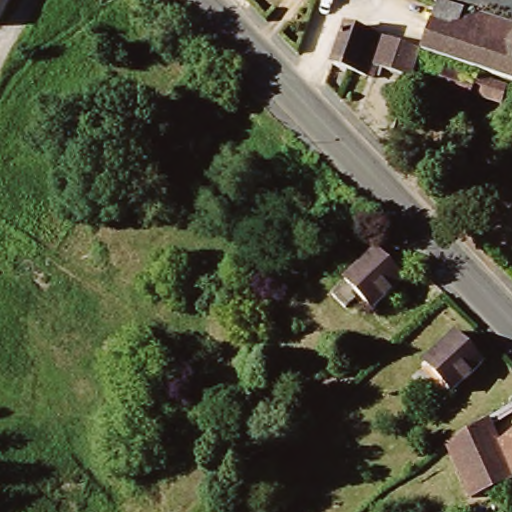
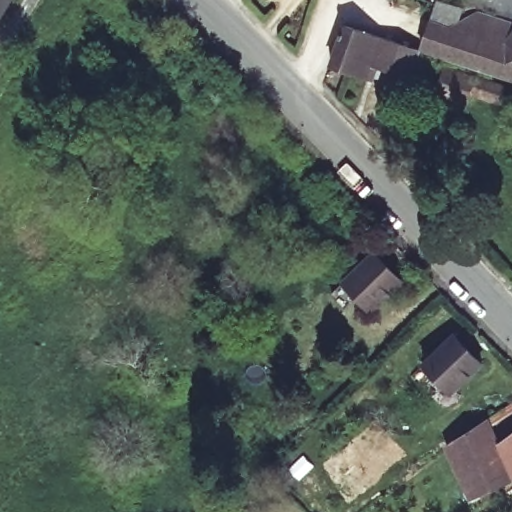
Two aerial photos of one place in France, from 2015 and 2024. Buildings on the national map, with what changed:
unchanged [(0,0),(15,0),(0,27),(0,0)]
unchanged [(421,46),(431,16),(436,0),(448,0),(459,3),(456,16),(475,7),(512,20),(512,76),(421,46)]
unchanged [(485,2),(487,0),(501,0),(487,7),(485,2)]
unchanged [(501,0),(512,0),(512,3),(505,7),(501,0)]
unchanged [(411,74),(370,60),(366,72),(331,60),(344,21),(421,46),(411,74)]
unchanged [(504,82),(499,97),(467,87),(464,97),(436,88),(445,62),(504,82)]
unchanged [(372,250),(402,280),(373,307),(344,276),(372,250)]
unchanged [(424,361),(452,332),(482,363),(452,391),(424,361)]
unchanged [(472,498),(446,445),(486,419),(497,441),(512,431),(512,480),(472,498)]

